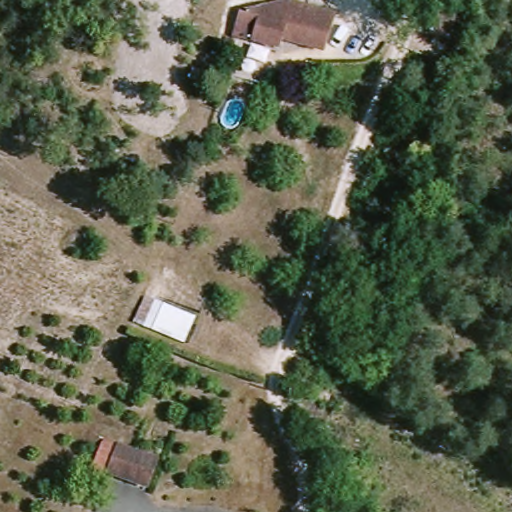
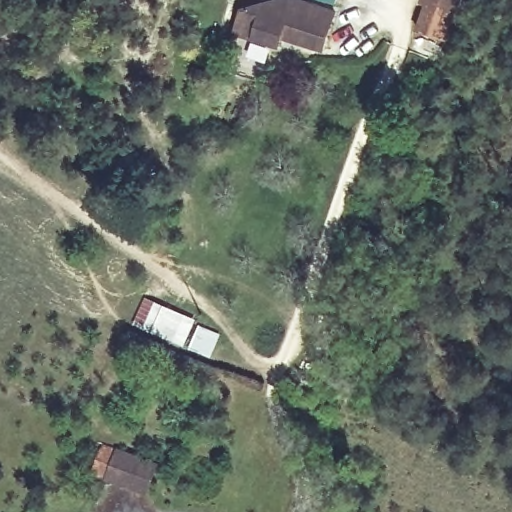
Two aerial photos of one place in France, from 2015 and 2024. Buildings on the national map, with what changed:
unchanged [(268,5),(286,0),(289,0),(337,18),(332,31),(323,55),(283,40),(279,49),(237,33),(244,12),(268,5)]
unchanged [(443,45),(424,37),(433,14),(417,8),(420,0),(459,0),(443,45)]
unchanged [(92,477),(104,446),(156,466),(147,498),(92,477)]

